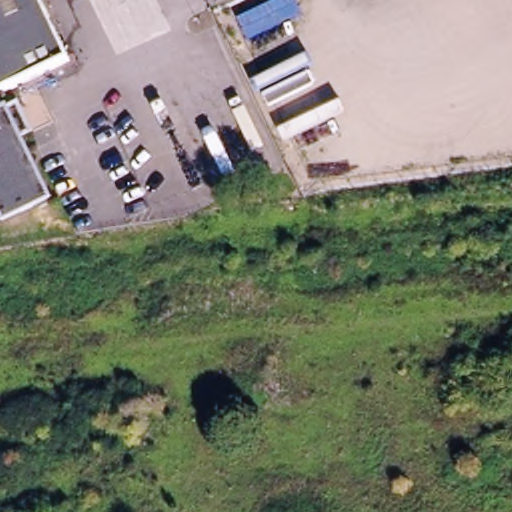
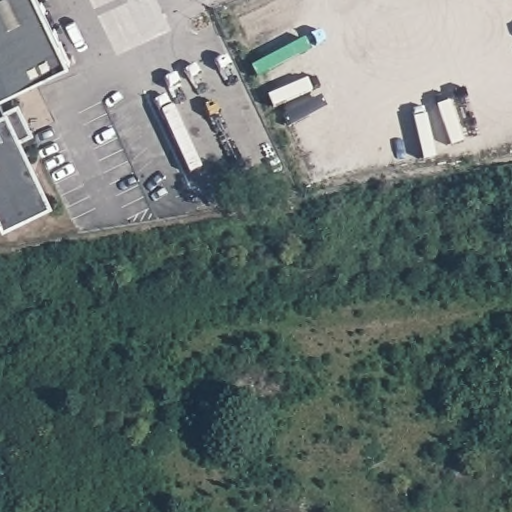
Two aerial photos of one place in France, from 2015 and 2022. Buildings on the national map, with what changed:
unchanged [(0,98),(0,0),(38,0),(70,61),(0,98)]
unchanged [(20,140),(50,198),(10,220),(0,202),(0,101),(4,109),(16,102),(32,134),(20,140)]

